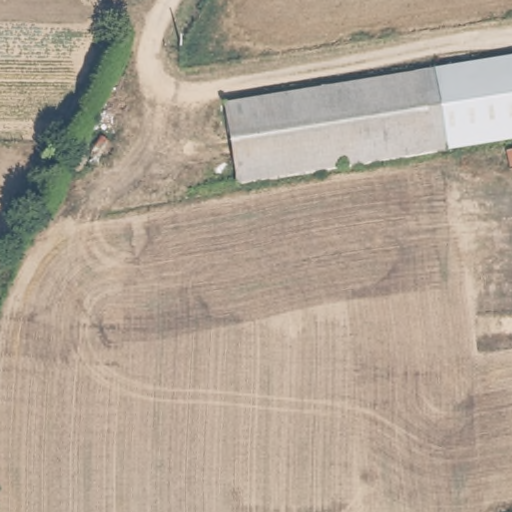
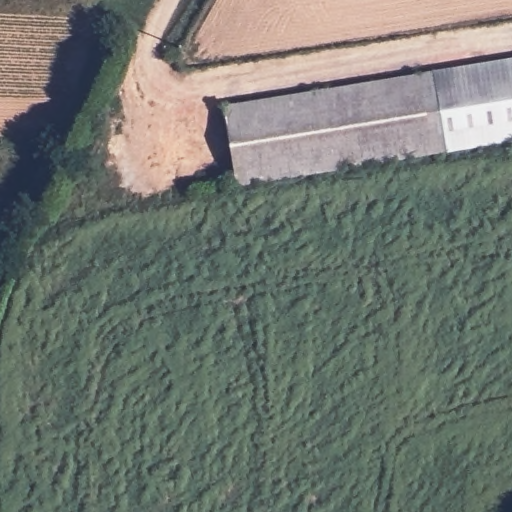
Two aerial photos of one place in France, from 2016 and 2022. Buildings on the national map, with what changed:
unchanged [(512,62),(512,138),(448,149),(434,76),(512,62)]
unchanged [(238,183),(227,110),(434,76),(448,149),(238,183)]

